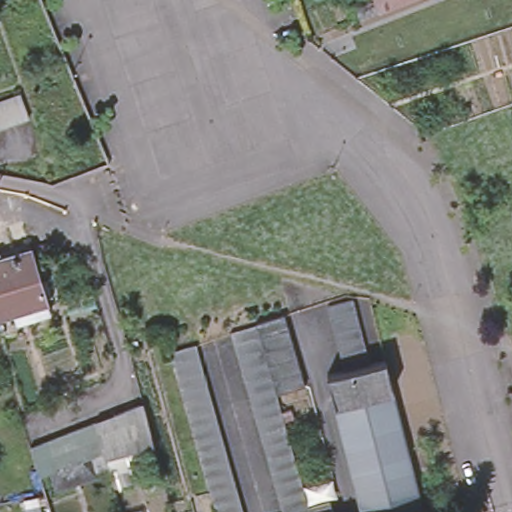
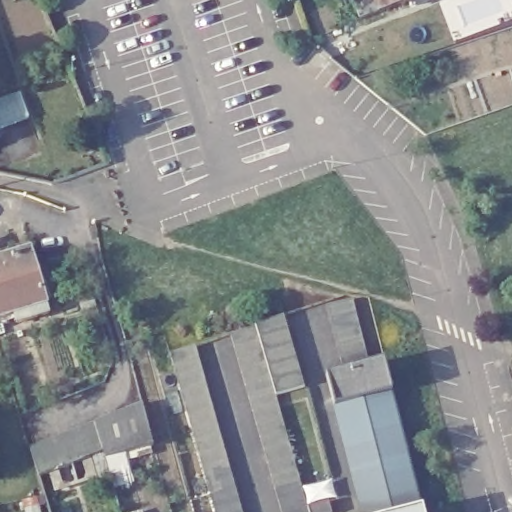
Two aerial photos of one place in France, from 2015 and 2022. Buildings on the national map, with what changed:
unchanged [(382,12),(382,10),(378,0),(413,0),(382,12)]
unchanged [(0,103),(22,94),(33,121),(0,135),(0,103)]
unchanged [(50,297),(17,307),(19,312),(0,318),(0,259),(35,249),(50,297)]
unchanged [(326,307),(352,300),(368,364),(342,371),(326,307)]
unchanged [(280,395),(276,381),(275,378),(272,368),(268,353),(263,338),(260,329),(260,327),(260,326),(260,325),(288,316),(292,330),(297,345),(300,358),(300,359),(304,373),(308,388),(280,395)]
unchanged [(282,500),(262,427),(261,424),(257,411),(256,408),(252,395),(250,385),(246,372),(242,359),(238,347),(235,334),(260,326),(260,327),(260,329),(263,338),(268,353),(272,368),(275,378),(276,381),(280,395),(285,414),(287,417),(287,419),(309,492),(310,494),(313,507),(334,502),(337,512),(286,512),(283,502),(282,500)]
unchanged [(193,354),(197,367),(201,380),(205,393),(208,406),(212,417),(213,422),(215,432),(220,445),(223,457),(225,464),(231,486),(234,496),(235,502),(238,512),(211,512),(208,505),(208,504),(205,491),(201,478),(197,465),(194,452),(190,439),(187,426),(183,413),(180,400),(175,387),(172,374),(168,361),(165,349),(190,341),(193,354)]
unchanged [(417,512),(361,512),(325,375),(342,371),(368,364),(384,361),(422,511),(417,512)]
unchanged [(102,457),(93,427),(142,408),(153,451),(105,465),(102,457)]
unchanged [(50,477),(38,482),(30,452),(93,427),(102,457),(87,463),(95,481),(58,496),(50,477)]
unchanged [(423,512),(417,512),(422,511),(423,512)]

